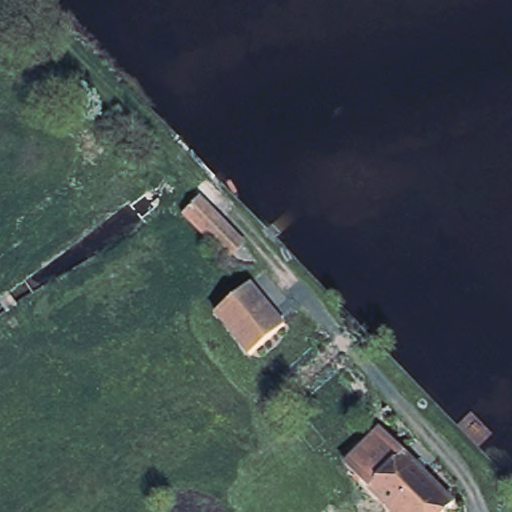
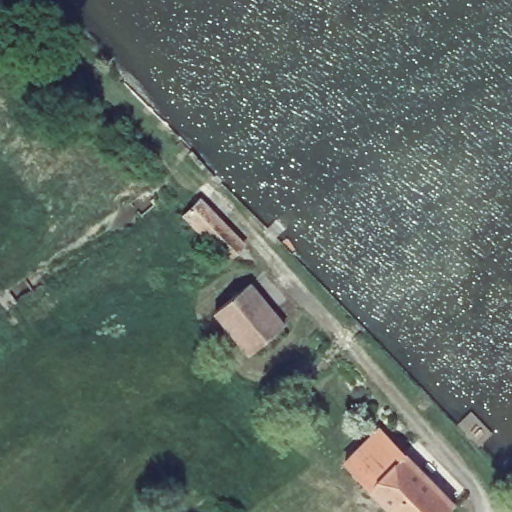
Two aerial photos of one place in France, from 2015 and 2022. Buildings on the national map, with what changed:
unchanged [(200,200),(239,246),(225,257),(187,210),(200,200)]
unchanged [(286,322),(252,352),(218,312),(252,283),(286,322)]
unchanged [(369,487),(348,466),(346,463),(380,431),(403,455),(369,487)]
unchanged [(393,512),(392,512),(381,500),(369,487),(403,455),(427,480),(393,512)]
unchanged [(452,505),(446,512),(393,512),(427,480),(452,505)]
unchanged [(512,486),(512,512),(501,512),(493,504),(512,486)]

